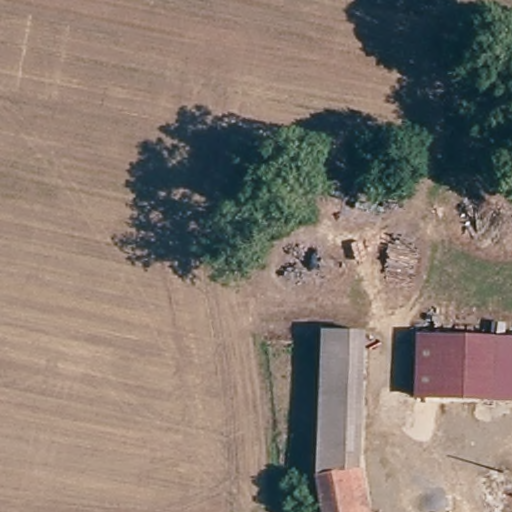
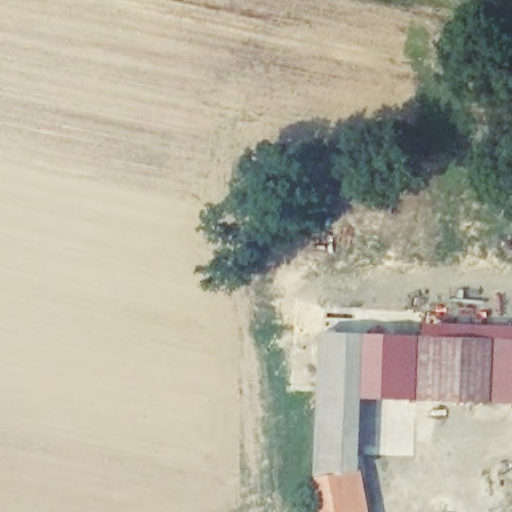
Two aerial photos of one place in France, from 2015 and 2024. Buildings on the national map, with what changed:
unchanged [(364,462),(364,467),(353,471),(319,481),(318,463),(317,448),(311,346),(310,336),(344,334),(356,333),(357,333),(364,462)]
new [(409,397),(360,398),(357,333),(414,335),(409,397)]
unchanged [(443,379),(450,379),(449,399),(409,397),(414,335),(447,337),(443,379)]
unchanged [(488,401),(449,399),(450,379),(443,379),(447,337),(492,339),(488,401)]
unchanged [(512,341),(512,402),(488,401),(492,339),(512,341)]
unchanged [(319,481),(353,471),(366,512),(329,512),(319,481)]

